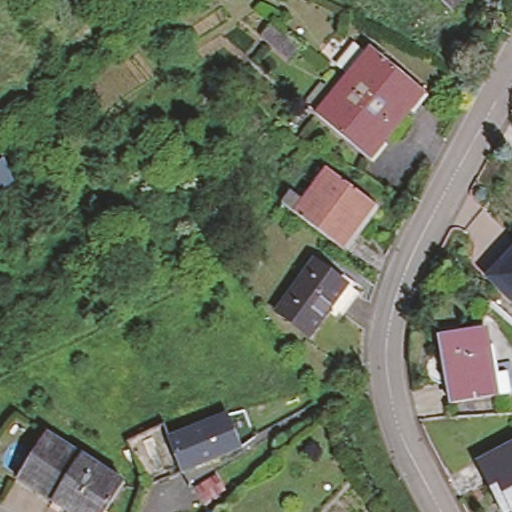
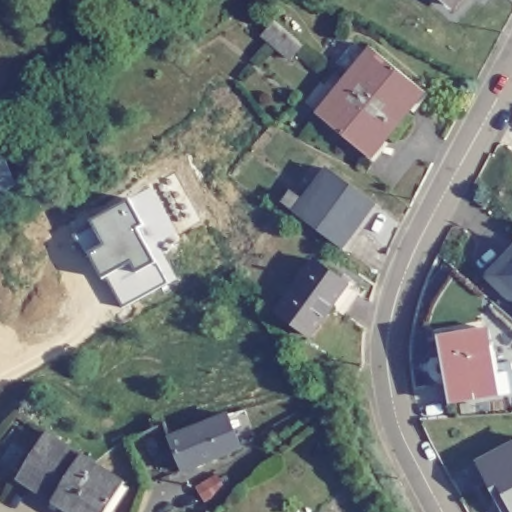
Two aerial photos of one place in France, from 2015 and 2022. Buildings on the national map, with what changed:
unchanged [(451,6),(449,9),(439,0),(452,0),(448,4),(451,6)]
unchanged [(290,61),(284,56),(261,37),(273,22),(301,46),(290,61)]
unchanged [(313,102),(339,70),(344,64),(344,61),(361,42),(372,51),(377,45),(428,90),(402,122),(373,157),(321,112),(322,110),(313,102)]
unchanged [(294,205),(329,160),(374,194),(351,224),(354,226),(341,241),(294,205)]
new [(138,225),(131,230),(166,285),(122,308),(108,276),(102,279),(76,233),(126,202),(138,225)]
unchanged [(488,268),(512,245),(512,290),(510,292),(488,268)]
unchanged [(337,306),(326,298),(304,328),(271,304),(310,252),(342,276),(353,284),(337,306)]
unchanged [(486,332),(492,368),(509,367),(511,377),(512,377),(512,395),(454,406),(441,340),(486,332)]
unchanged [(168,436),(171,434),(226,411),(235,431),(241,429),(243,436),(238,438),(241,444),(181,469),(168,436)]
unchanged [(45,430),(83,453),(53,498),(17,475),(45,430)]
unchanged [(512,440),(512,512),(509,512),(479,458),(512,440)]
unchanged [(103,512),(75,512),(53,498),(83,453),(124,479),(103,512)]

